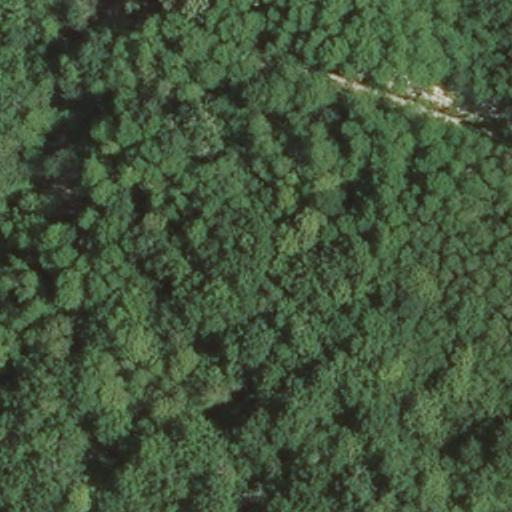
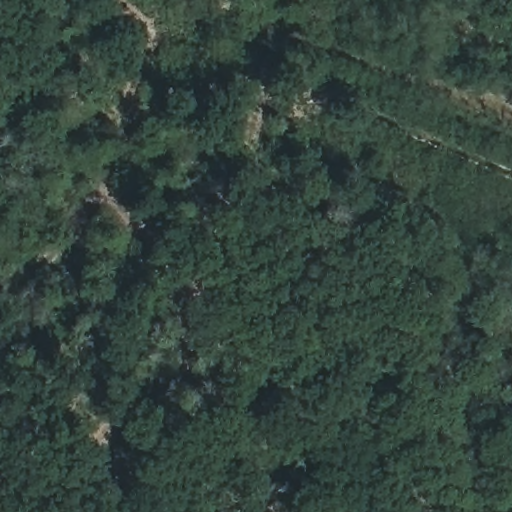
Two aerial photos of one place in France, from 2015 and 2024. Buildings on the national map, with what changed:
[]

